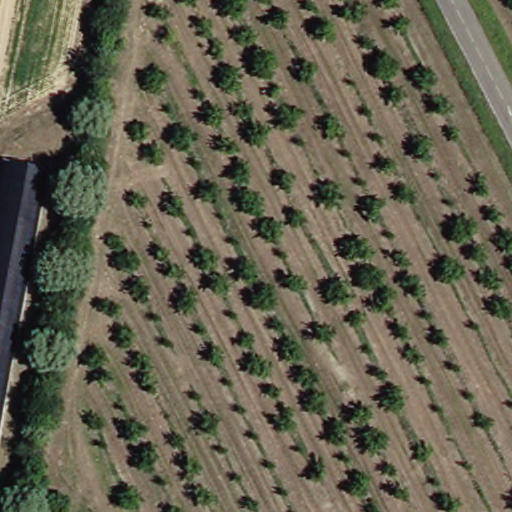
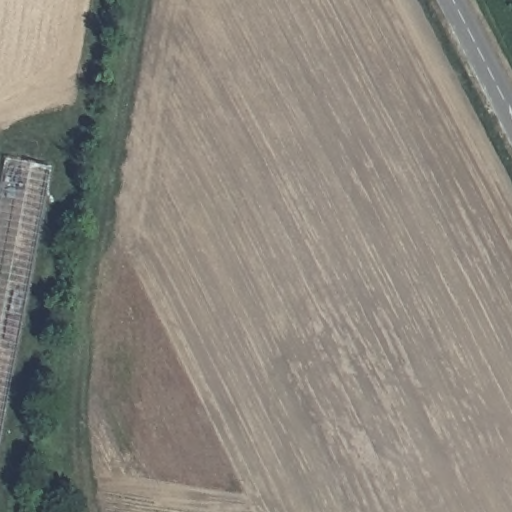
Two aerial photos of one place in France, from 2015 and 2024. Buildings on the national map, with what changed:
unchanged [(0,461),(0,167),(2,158),(55,166),(0,461)]

